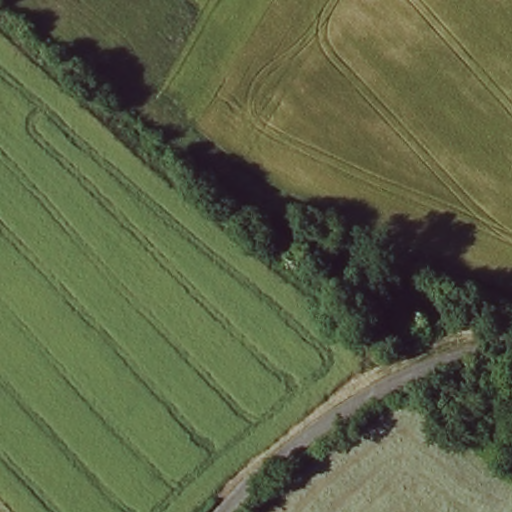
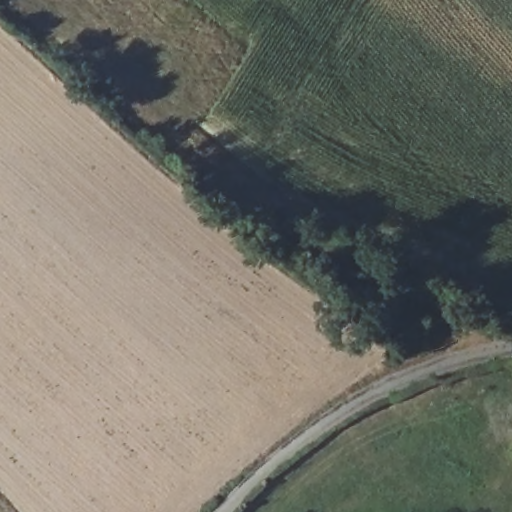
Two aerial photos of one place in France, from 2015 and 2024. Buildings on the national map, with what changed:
[]

